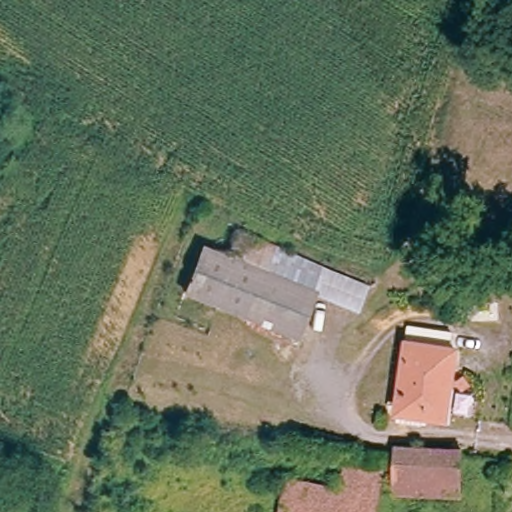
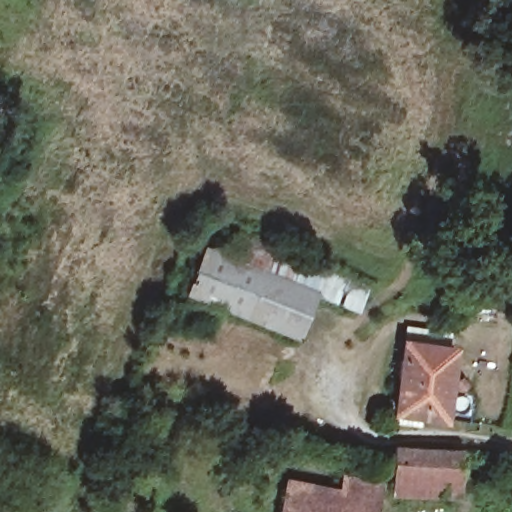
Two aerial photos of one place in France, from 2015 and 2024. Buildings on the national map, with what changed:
unchanged [(305,346),(179,293),(201,239),(224,248),(234,225),(370,281),(360,310),(325,294),(305,346)]
unchanged [(450,418),(426,415),(423,430),(391,424),(401,334),(459,343),(450,418)]
unchanged [(393,494),(393,479),(395,459),(395,450),(456,450),(456,458),(456,482),(456,498),(393,494)]
unchanged [(385,473),(384,478),(377,512),(286,512),(297,458),(385,473)]

